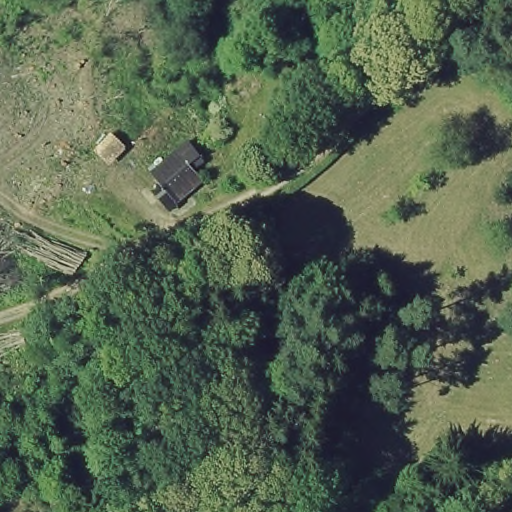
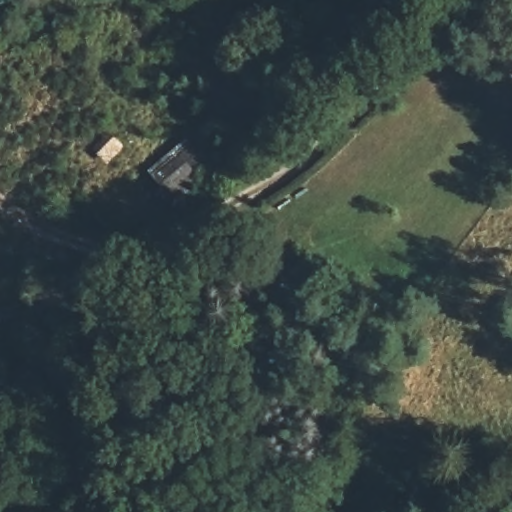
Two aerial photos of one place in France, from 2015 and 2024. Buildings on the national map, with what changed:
unchanged [(212,161),(196,167),(206,187),(176,210),(151,171),(194,136),(212,161)]

